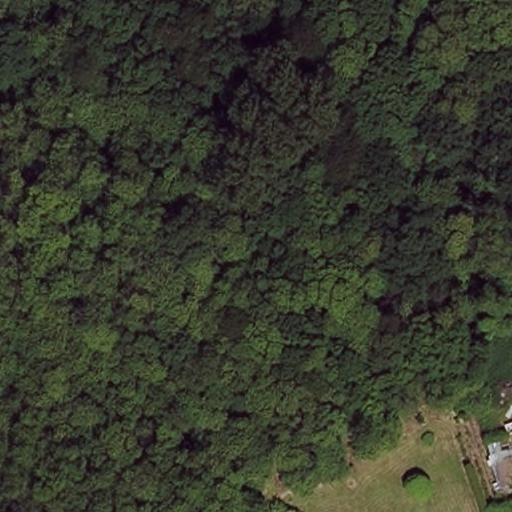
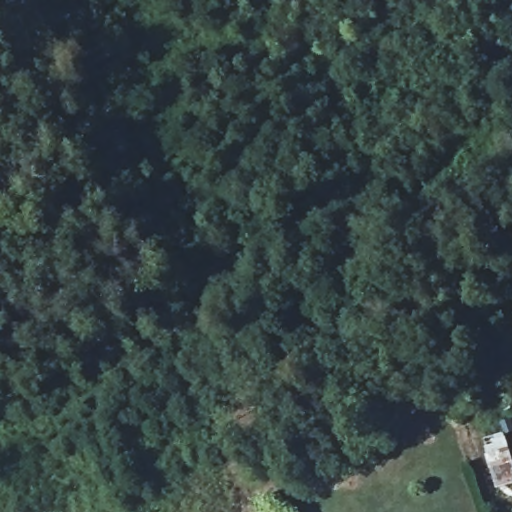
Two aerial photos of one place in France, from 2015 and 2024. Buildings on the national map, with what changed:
[]

